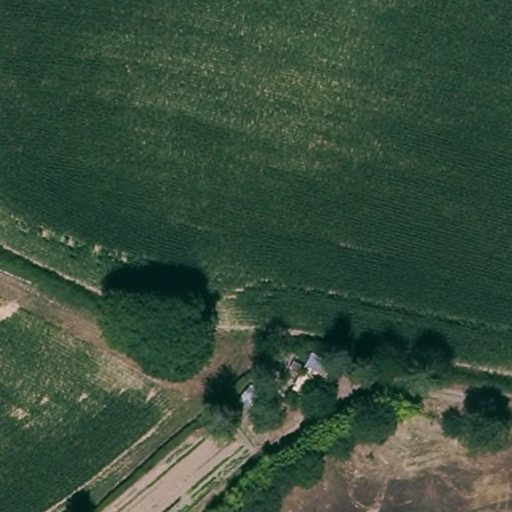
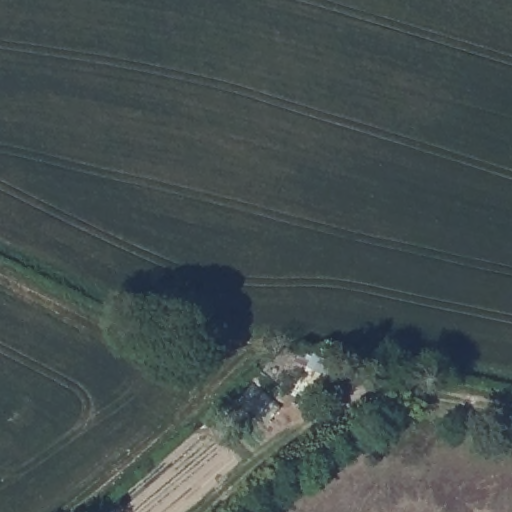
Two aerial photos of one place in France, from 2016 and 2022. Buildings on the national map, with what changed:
unchanged [(304,364),(333,377),(320,401),(292,390),(304,364)]

